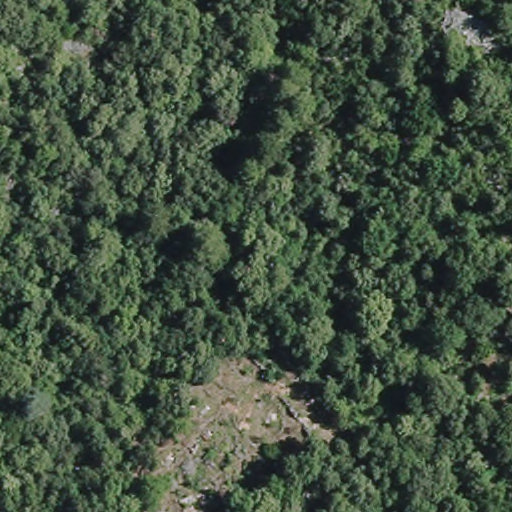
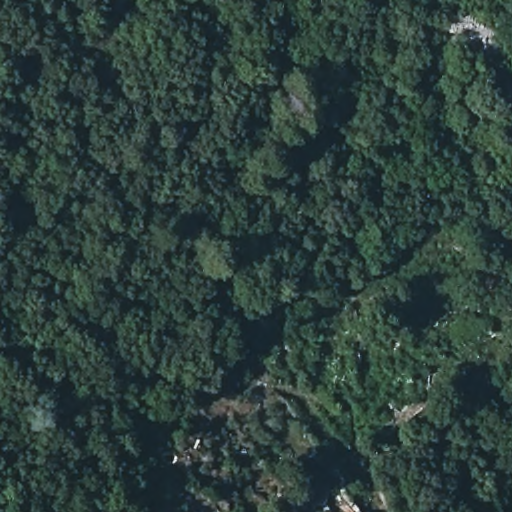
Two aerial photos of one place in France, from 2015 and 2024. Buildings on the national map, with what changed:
unchanged [(385,138),(399,121),(418,138),(404,155),(385,138)]

